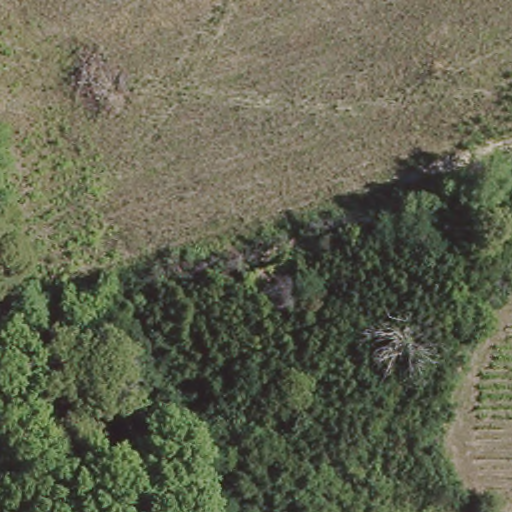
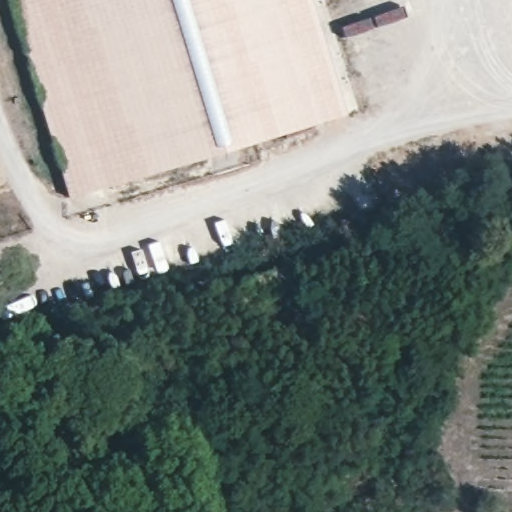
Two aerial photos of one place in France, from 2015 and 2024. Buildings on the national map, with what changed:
new [(83,204),(13,0),(298,0),(338,116),(83,204)]
demolished [(300,288),(252,304),(248,289),(295,273),(300,288)]
demolished [(96,494),(113,502),(109,506),(106,511),(91,504),(96,494)]

